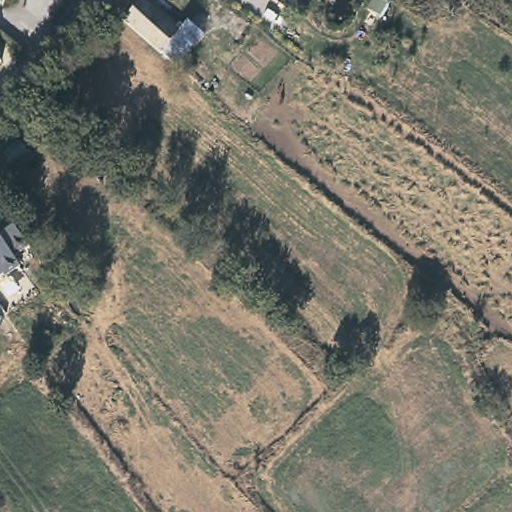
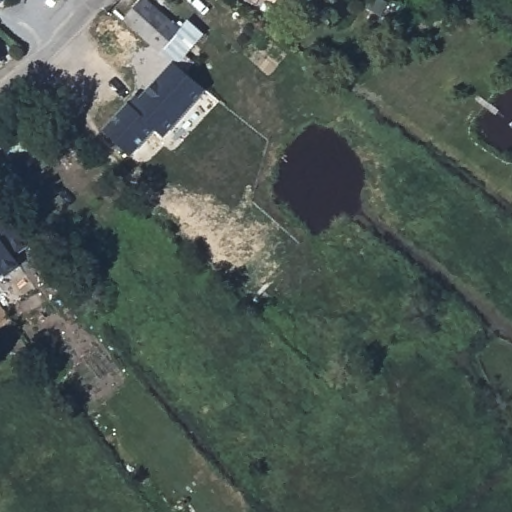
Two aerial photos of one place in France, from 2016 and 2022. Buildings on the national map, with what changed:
unchanged [(160,56),(121,21),(140,0),(143,0),(180,33),(160,56)]
unchanged [(3,63),(0,65),(0,58),(3,63)]
new [(164,139),(155,131),(131,156),(101,130),(137,94),(140,96),(172,61),(207,90),(164,139)]
unchanged [(33,247),(17,261),(24,270),(10,282),(8,280),(0,287),(0,214),(2,212),(33,247)]

